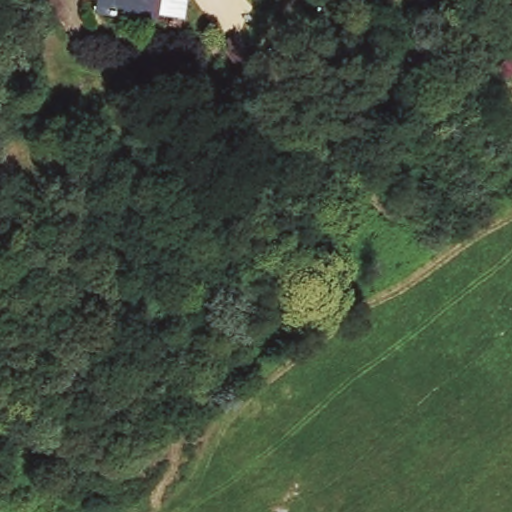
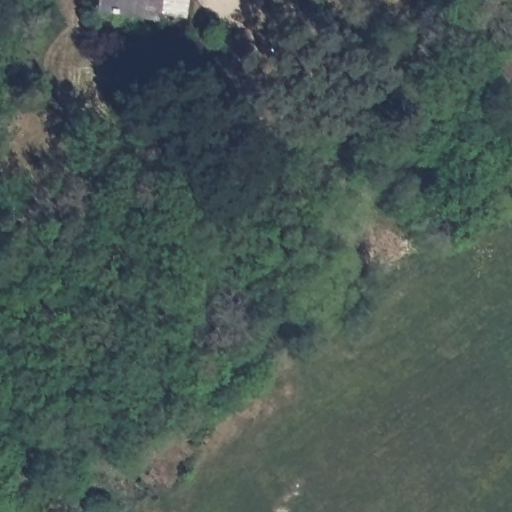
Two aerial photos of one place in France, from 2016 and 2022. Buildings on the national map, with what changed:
unchanged [(99,14),(101,3),(85,1),(85,0),(160,0),(157,23),(99,14)]

